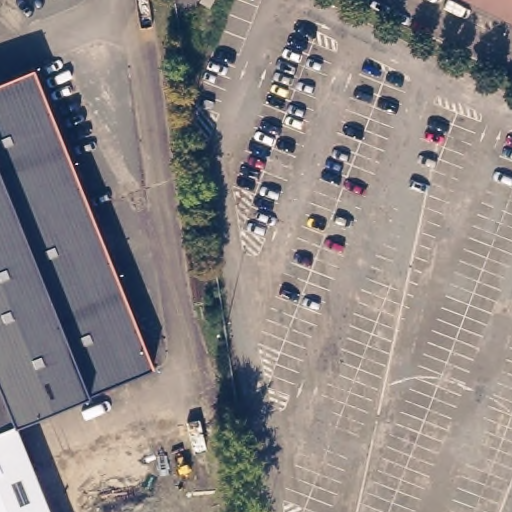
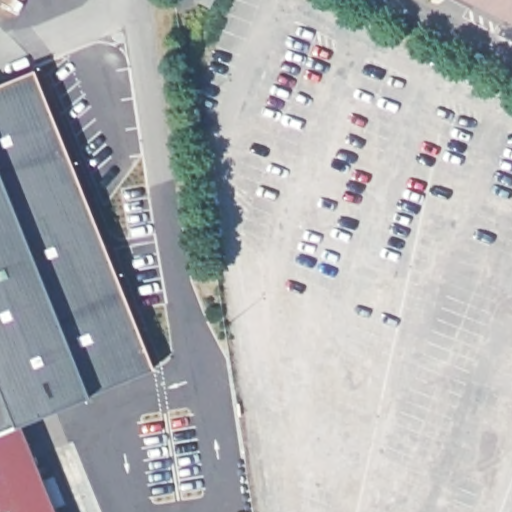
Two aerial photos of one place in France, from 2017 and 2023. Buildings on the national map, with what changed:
unchanged [(512,20),(507,17),(471,0),(512,0),(512,19),(512,20)]
unchanged [(154,363),(12,419),(0,424),(0,77),(34,63),(154,363)]
unchanged [(49,512),(0,512),(0,424),(12,419),(49,512)]

